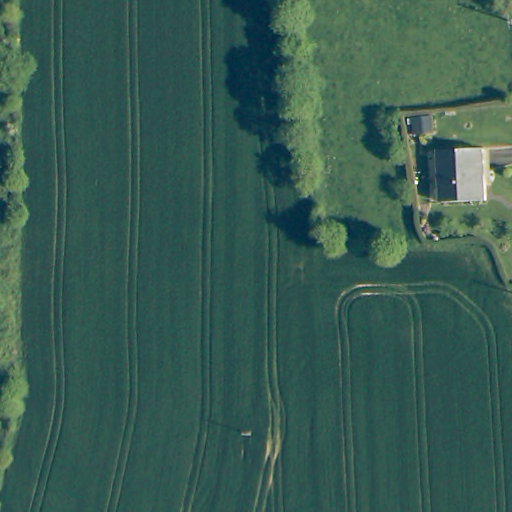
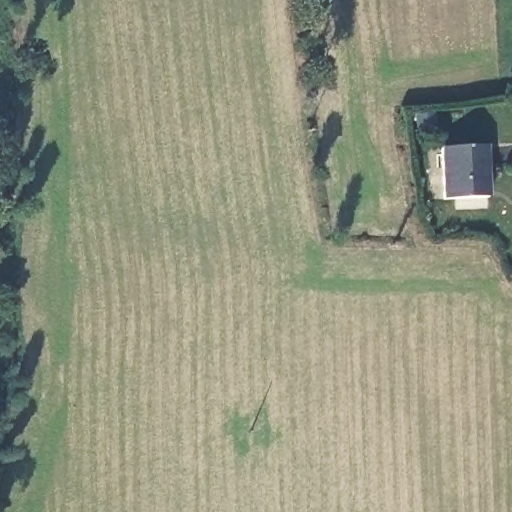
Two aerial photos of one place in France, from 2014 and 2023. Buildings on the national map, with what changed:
unchanged [(479,197),(437,199),(436,145),(478,142),(479,197)]

